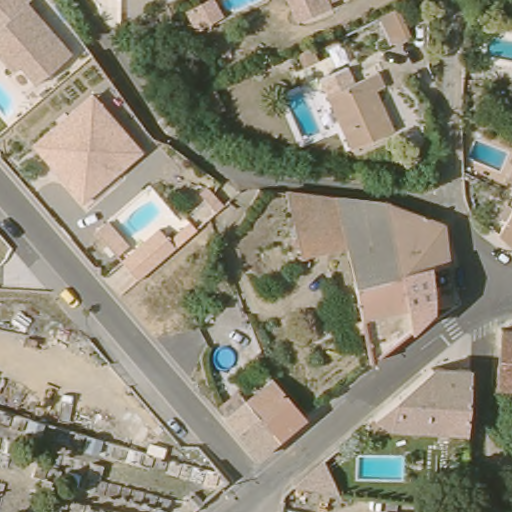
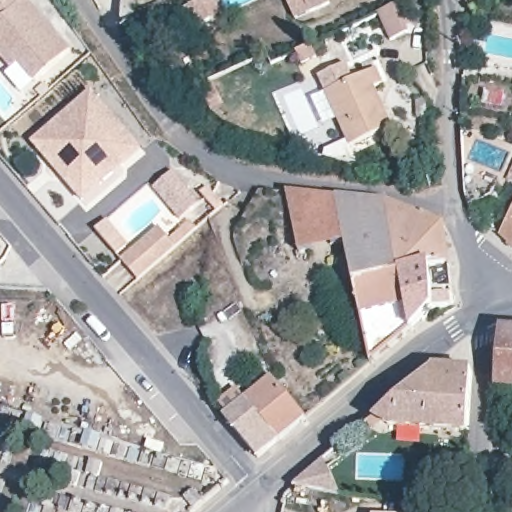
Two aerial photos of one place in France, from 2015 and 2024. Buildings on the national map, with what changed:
unchanged [(68,50),(34,83),(20,70),(11,72),(0,60),(0,0),(28,0),(25,3),(68,50)]
unchanged [(215,21),(200,27),(191,7),(205,0),(217,0),(225,16),(215,21)]
unchanged [(306,16),(299,0),(323,0),(325,6),(306,16)]
unchanged [(411,33),(393,41),(380,15),(399,7),(411,33)]
unchanged [(325,70),(319,80),(308,74),(315,64),(325,70)]
unchanged [(376,83),(394,124),(353,143),(328,89),(380,65),(386,79),(376,83)]
unchanged [(91,95),(140,154),(124,168),(124,175),(89,206),(30,145),(91,95)]
new [(155,190),(175,174),(202,205),(182,221),(155,190)]
unchanged [(198,187),(205,182),(212,190),(205,196),(198,187)]
unchanged [(342,246),(297,255),(283,191),(332,197),(342,246)]
unchanged [(332,197),(381,203),(440,224),(445,263),(396,271),(350,279),(342,246),(332,197)]
unchanged [(159,229),(170,241),(189,222),(195,230),(137,278),(120,263),(159,229)]
unchanged [(505,237),(512,223),(512,243),(505,237)]
unchanged [(434,307),(407,332),(396,271),(445,263),(450,305),(434,307)]
unchanged [(350,279),(396,271),(407,332),(367,365),(350,279)]
unchanged [(504,383),(509,326),(512,326),(512,384),(504,383)]
unchanged [(370,428),(375,419),(433,370),(474,373),(470,433),(392,428),(387,437),(370,428)]
unchanged [(259,454),(225,413),(247,395),(274,373),(308,413),(280,436),(259,454)]
unchanged [(327,492),(295,487),(321,465),(327,492)]

